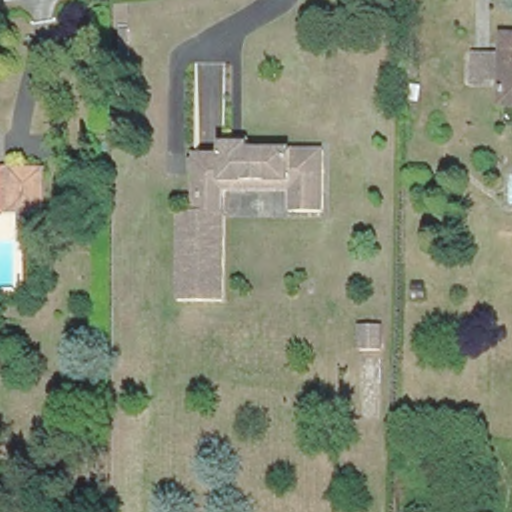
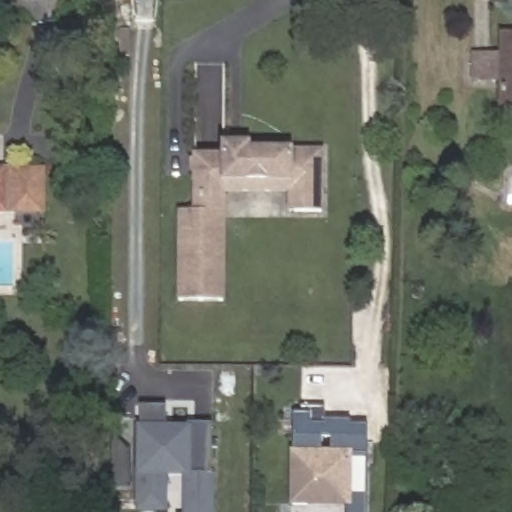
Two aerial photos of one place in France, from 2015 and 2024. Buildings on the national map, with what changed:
unchanged [(502,35),(512,36),(512,105),(502,104),(502,35)]
unchanged [(176,293),(177,211),(194,211),(195,196),(196,153),(223,154),(224,144),(224,136),(250,137),(250,144),(250,149),(312,151),(319,151),(318,170),(318,211),(289,210),(283,210),(283,192),(283,190),(225,189),(225,197),(223,293),(176,293)]
unchanged [(33,172),(32,211),(4,210),(5,171),(33,172)]
demolished [(380,322),(379,348),(353,347),(353,322),(380,322)]
new [(168,512),(135,512),(135,477),(136,424),(140,424),(140,405),(166,406),(166,425),(187,425),(187,423),(212,424),(211,474),(215,474),(214,512),(182,512),(182,476),(168,477),(168,512)]
new [(292,506),(294,412),(309,412),(308,407),(327,407),(327,418),(352,419),(353,424),(369,424),(368,512),(346,512),(347,507),(292,506)]

